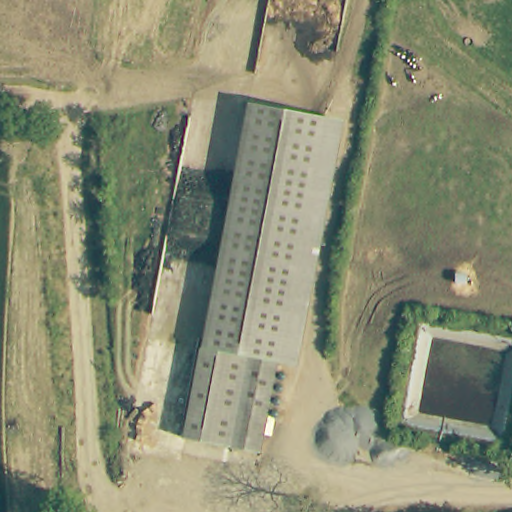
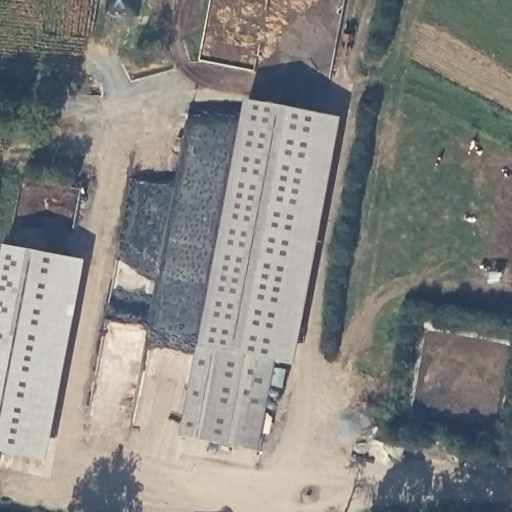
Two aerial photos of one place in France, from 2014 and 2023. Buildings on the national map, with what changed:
unchanged [(261,105),(336,123),(277,365),(203,347),(261,105)]
unchanged [(336,123),(346,125),(301,370),(277,365),(336,123)]
new [(0,277),(6,245),(90,261),(50,461),(0,452),(0,277)]
unchanged [(255,456),(181,437),(203,347),(277,365),(255,456)]

